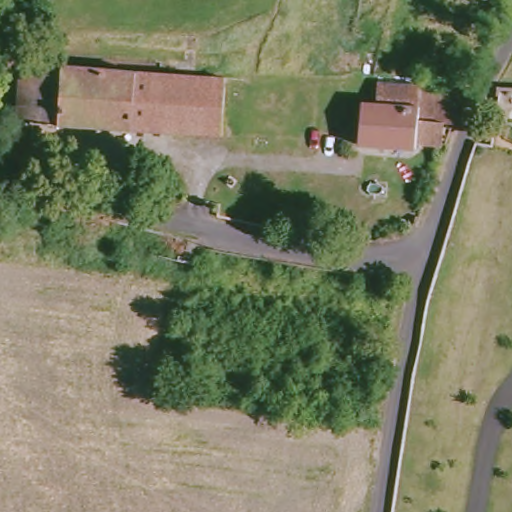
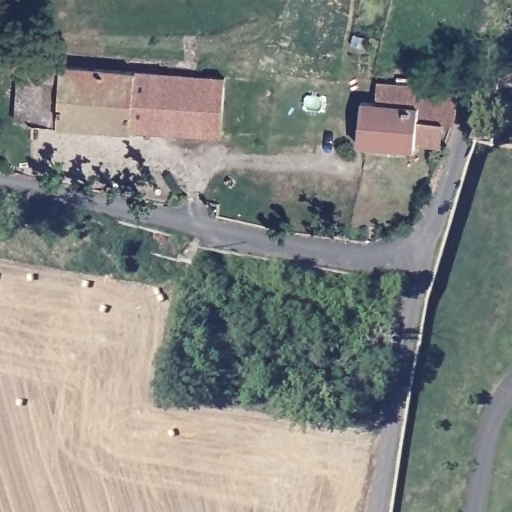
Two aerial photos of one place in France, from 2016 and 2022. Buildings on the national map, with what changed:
unchanged [(16,124),(16,120),(0,120),(4,80),(18,80),(8,80),(11,71),(33,75),(33,66),(225,78),(223,136),(16,124)]
unchanged [(487,120),(488,82),(512,83),(512,121),(487,120)]
unchanged [(411,147),(411,154),(353,149),(357,107),(371,107),(373,89),(415,92),(415,97),(452,99),(452,117),(448,129),(434,127),(435,146),(411,147)]

